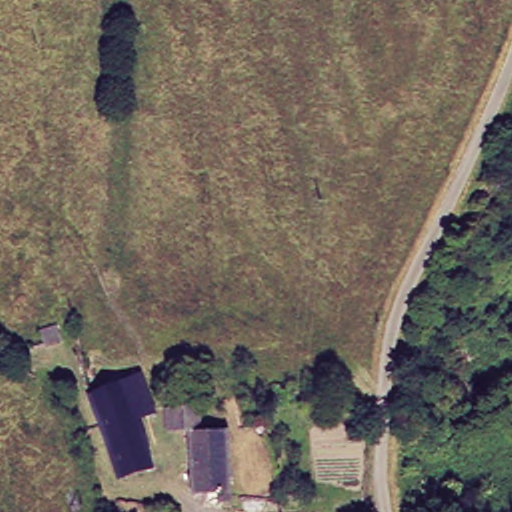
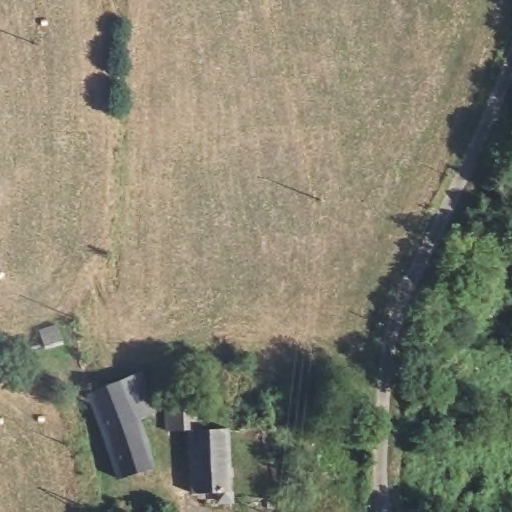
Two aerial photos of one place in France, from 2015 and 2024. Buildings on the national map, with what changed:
unchanged [(41,317),(58,311),(67,331),(48,337),(41,317)]
unchanged [(151,417),(169,472),(127,487),(93,393),(100,391),(152,371),(166,411),(151,417)]
unchanged [(231,500),(208,500),(208,492),(191,492),(191,432),(167,430),(167,402),(201,402),(202,427),(229,426),(231,500)]

